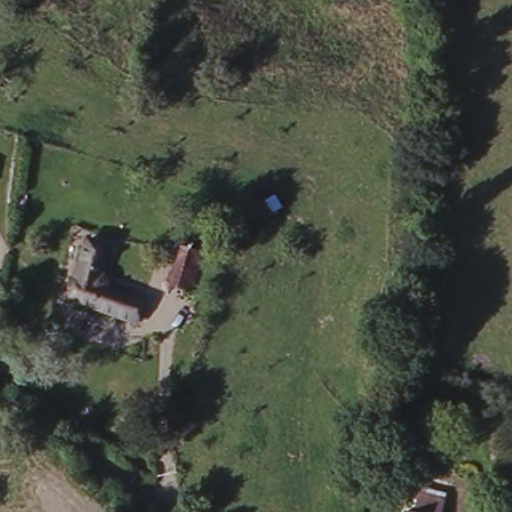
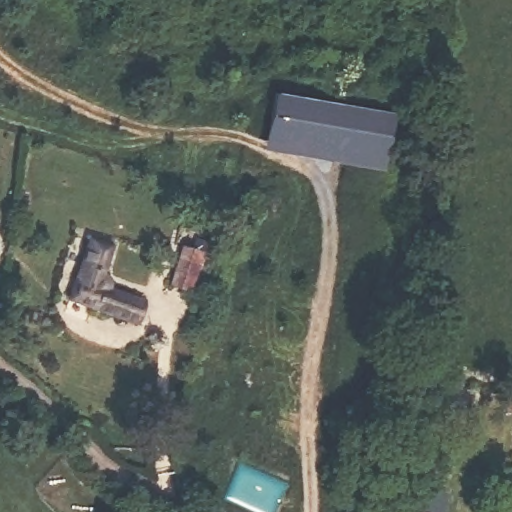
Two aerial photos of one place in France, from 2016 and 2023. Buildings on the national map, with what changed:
new [(399,106),(389,165),(267,147),(278,86),(399,106)]
unchanged [(104,252),(93,276),(100,280),(103,285),(104,289),(103,295),(125,302),(119,321),(57,297),(77,242),(104,252)]
unchanged [(202,251),(188,289),(167,281),(180,242),(202,251)]
unchanged [(416,492),(444,501),(441,512),(410,512),(416,492)]

